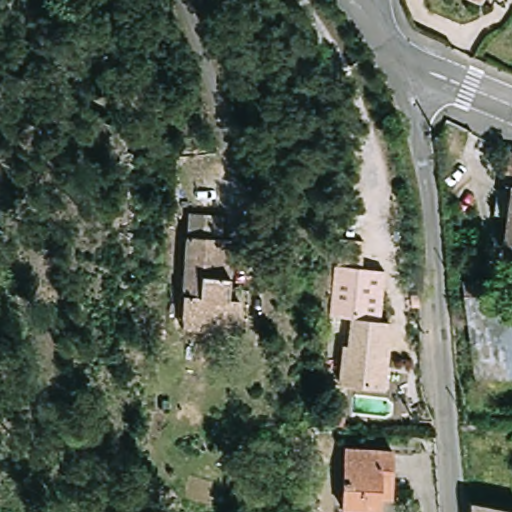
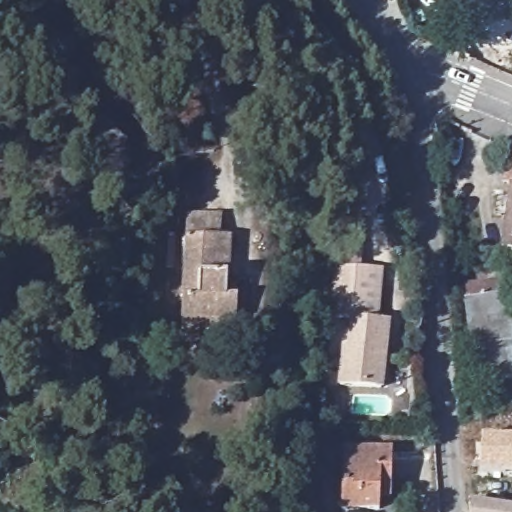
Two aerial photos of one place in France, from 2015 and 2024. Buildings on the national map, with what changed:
unchanged [(510,215),(512,201),(512,215),(510,215)]
unchanged [(187,318),(192,236),(193,215),(225,215),(224,238),(235,238),(233,288),(241,289),(240,298),(240,321),(239,331),(187,328),(187,318)]
unchanged [(345,383),(349,345),(353,345),(355,318),(334,316),(340,265),(388,270),(383,320),(393,322),(385,388),(345,383)]
unchanged [(472,283),(512,278),(512,314),(477,318),(472,283)]
unchanged [(477,318),(512,314),(512,379),(485,382),(477,318)]
new [(512,437),(512,473),(480,471),(482,435),(512,437)]
unchanged [(383,510),(347,509),(350,448),(397,450),(395,497),(384,496),(383,510)]
unchanged [(512,510),(512,512),(474,512),(473,502),(512,510)]

